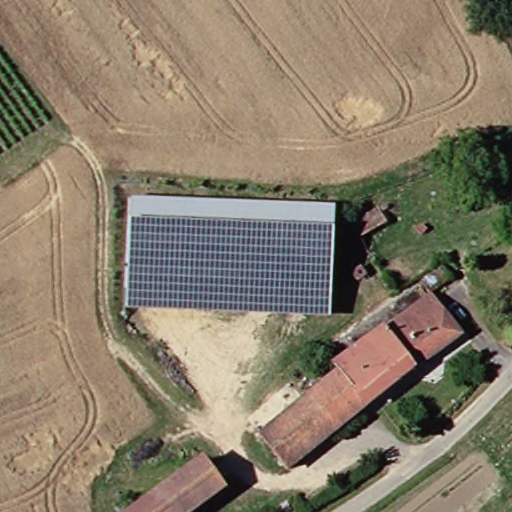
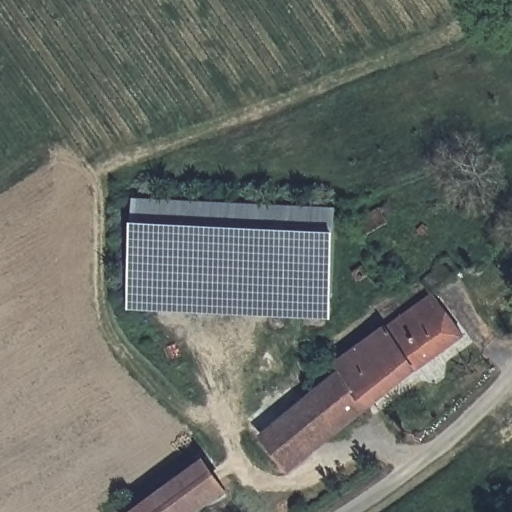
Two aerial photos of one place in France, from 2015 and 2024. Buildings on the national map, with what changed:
unchanged [(134,204),(339,213),(334,297),(334,315),(129,305),(130,287),(134,204)]
unchanged [(387,204),(387,205),(394,217),(387,221),(370,231),(363,217),(387,204)]
unchanged [(444,258),(454,272),(433,289),(421,275),(444,258)]
unchanged [(365,274),(361,267),(369,262),(374,268),(365,274)]
unchanged [(421,366),(417,362),(290,462),(266,429),(344,367),(337,360),(433,289),(466,331),(421,366)]
unchanged [(226,487),(194,512),(136,512),(203,459),(226,487)]

